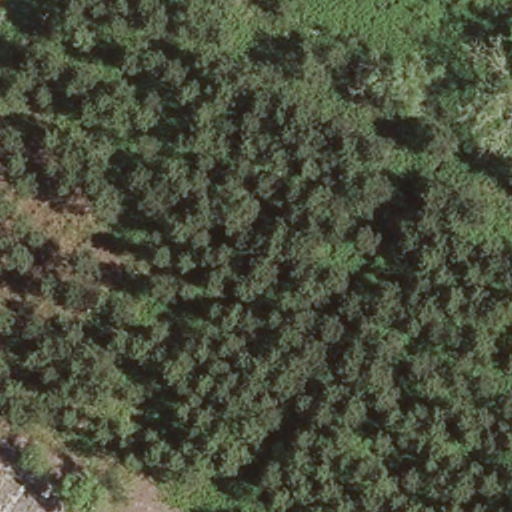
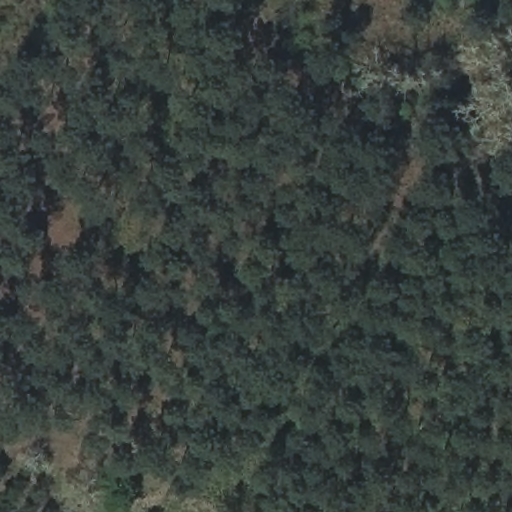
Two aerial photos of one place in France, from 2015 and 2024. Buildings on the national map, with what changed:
[]

